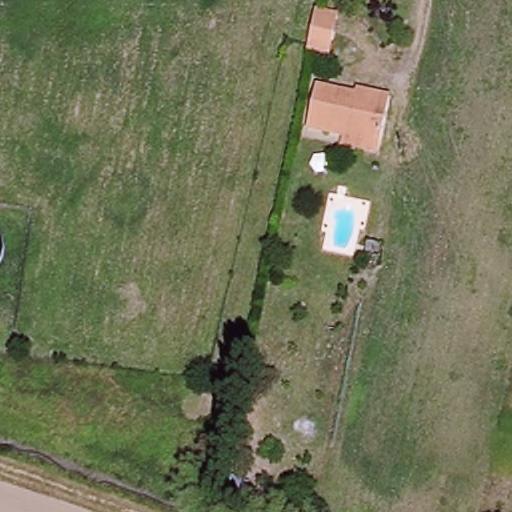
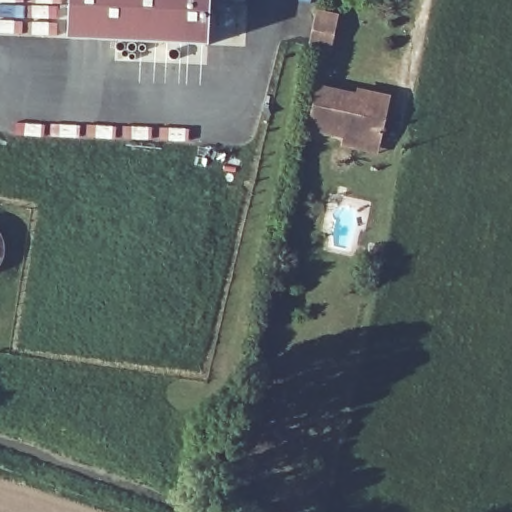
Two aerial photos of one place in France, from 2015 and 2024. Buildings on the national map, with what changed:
new [(66,0),(210,0),(207,42),(64,37),(66,0)]
unchanged [(325,17),(348,22),(340,58),(317,52),(325,17)]
unchanged [(339,147),(341,137),(304,129),(312,87),(366,99),(367,93),(389,98),(378,146),(376,156),(339,147)]

